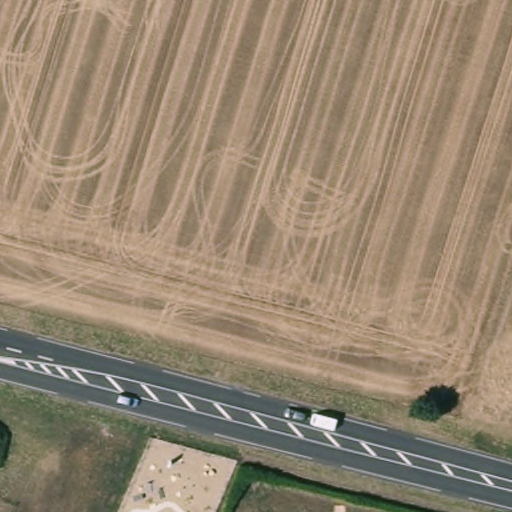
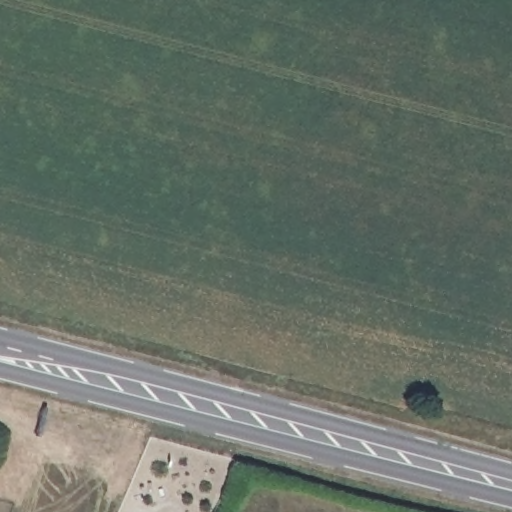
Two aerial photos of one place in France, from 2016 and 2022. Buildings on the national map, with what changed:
[]

